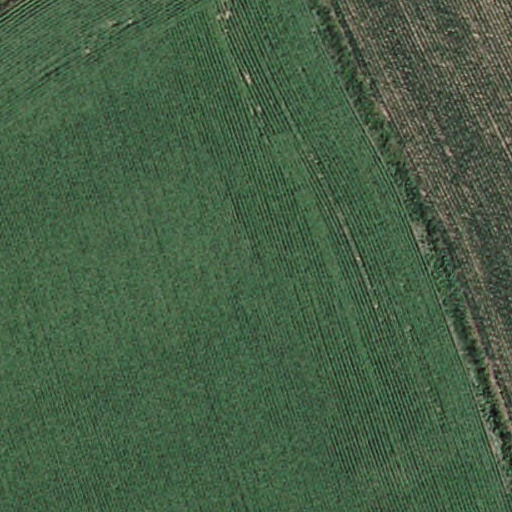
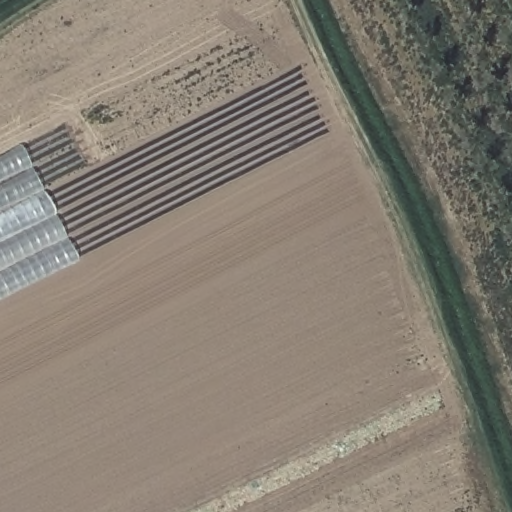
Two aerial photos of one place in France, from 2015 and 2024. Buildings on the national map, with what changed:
new [(0,300),(0,155),(19,146),(78,261),(0,300)]

